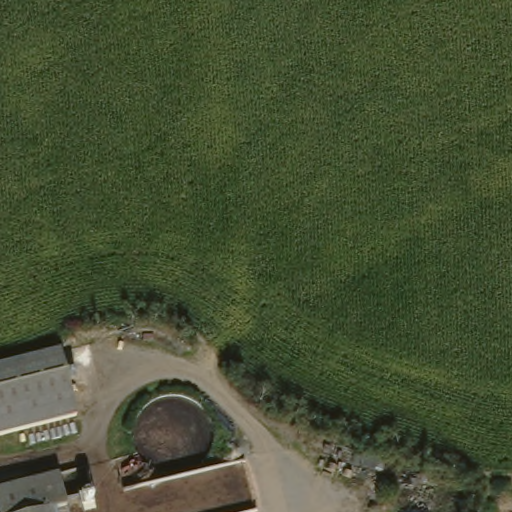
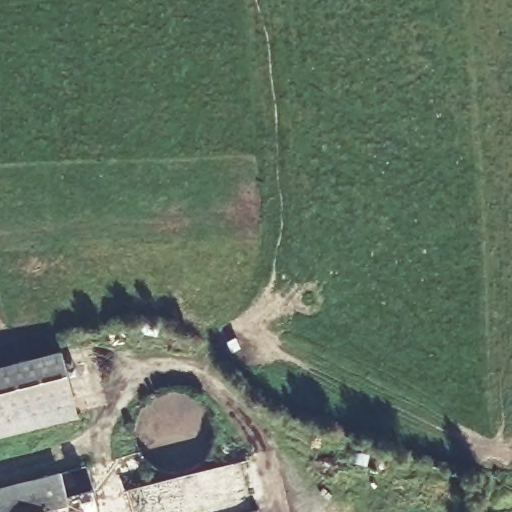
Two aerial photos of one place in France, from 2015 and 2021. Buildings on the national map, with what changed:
unchanged [(77,412),(0,432),(0,364),(61,349),(77,412)]
unchanged [(0,488),(57,473),(66,504),(51,508),(35,512),(0,512),(0,511),(0,488)]
unchanged [(52,512),(35,512),(51,508),(52,512)]

